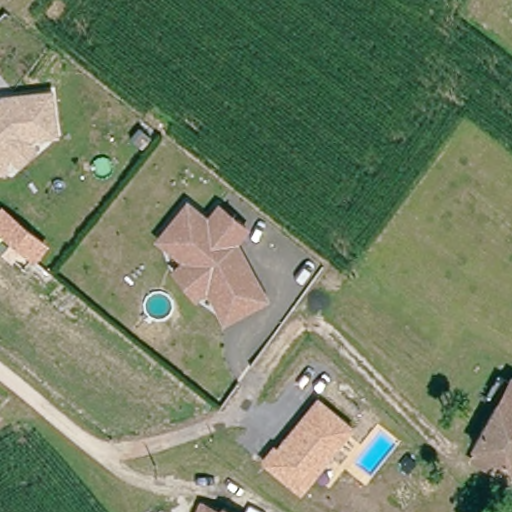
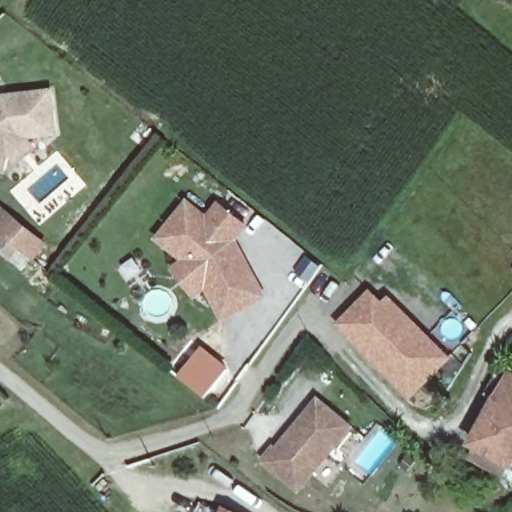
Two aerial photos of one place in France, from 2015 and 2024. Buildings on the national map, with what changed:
unchanged [(20,158),(8,145),(2,167),(0,167),(0,97),(2,96),(49,90),(54,130),(20,134),(31,147),(20,158)]
unchanged [(49,245),(35,260),(22,249),(12,261),(2,252),(11,241),(0,231),(0,208),(2,205),(49,245)]
unchanged [(206,223),(217,209),(245,230),(234,244),(240,256),(265,299),(231,318),(212,285),(191,260),(162,237),(186,207),(206,223)]
unchanged [(191,260),(212,285),(231,318),(225,321),(206,290),(195,299),(174,274),(185,264),(158,243),(162,237),(191,260)]
new [(383,301),(390,296),(453,359),(412,399),(336,325),(371,290),(383,301)]
unchanged [(498,387),(506,391),(512,380),(512,459),(471,437),(498,387)]
unchanged [(317,396),(355,427),(298,492),(260,460),(273,442),(277,445),(317,396)]
unchanged [(207,512),(191,512),(194,506),(207,512)]
unchanged [(217,506),(228,512),(213,512),(217,506)]

